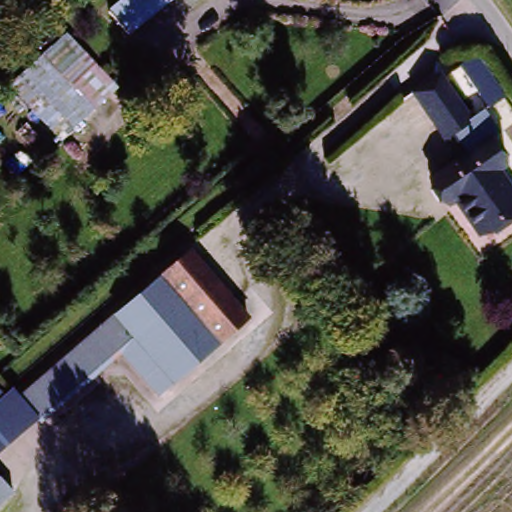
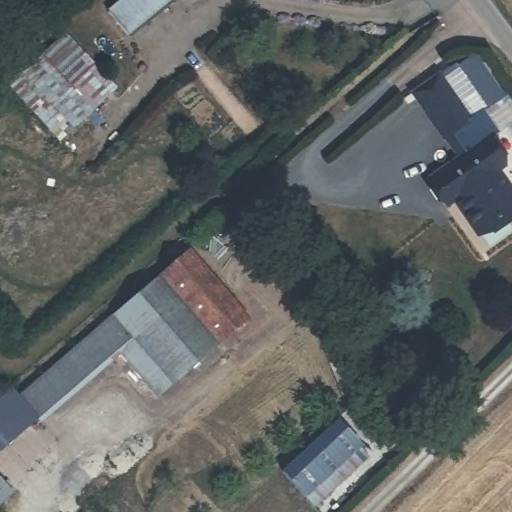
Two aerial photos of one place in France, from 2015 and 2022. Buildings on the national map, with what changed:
unchanged [(126,0),(178,0),(138,38),(114,11),(126,0)]
unchanged [(62,41),(112,97),(57,147),(8,92),(62,41)]
unchanged [(460,69),(478,55),(507,94),(487,106),(460,69)]
unchanged [(468,225),(451,199),(443,204),(438,197),(424,177),(452,157),(408,97),(436,77),(466,119),(453,129),(467,148),(482,137),(500,162),(491,169),(512,200),(512,209),(496,221),(475,234),(468,225)]
unchanged [(187,242),(247,307),(160,388),(122,348),(44,422),(42,421),(21,397),(187,242)]
unchanged [(14,390),(21,397),(42,421),(0,460),(0,393),(5,398),(14,390)]
new [(337,420),(370,456),(313,509),(281,472),(337,420)]
unchanged [(2,512),(0,512),(0,476),(19,496),(2,512)]

